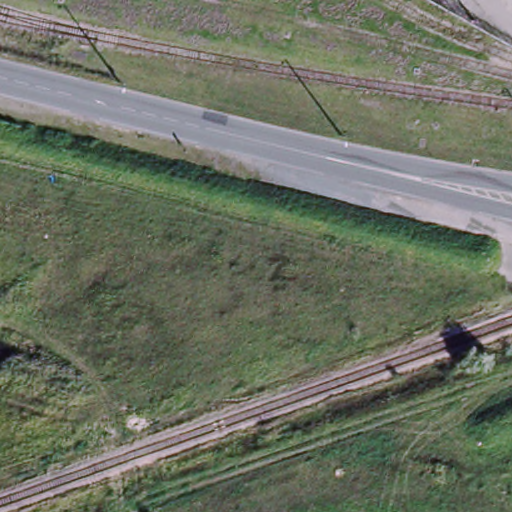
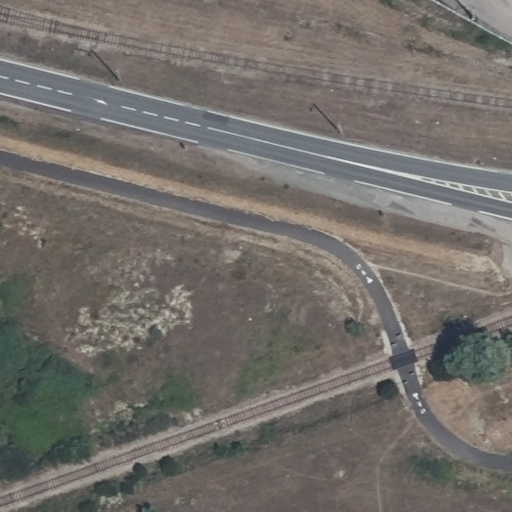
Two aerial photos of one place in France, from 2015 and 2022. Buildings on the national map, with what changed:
[]

